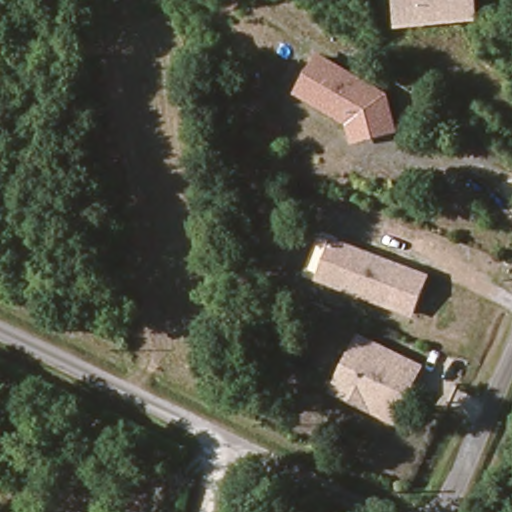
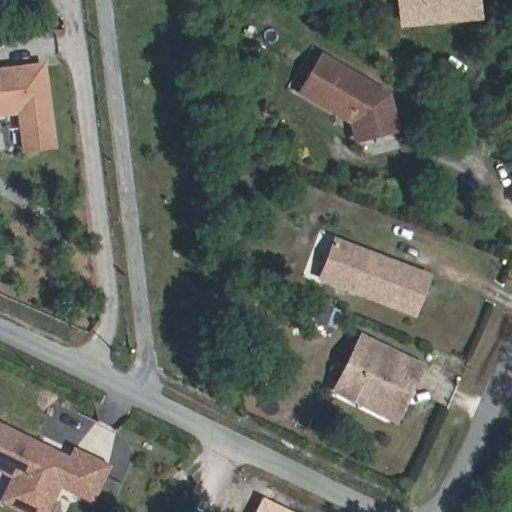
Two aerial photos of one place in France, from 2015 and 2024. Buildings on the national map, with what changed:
unchanged [(472,15),(400,22),(398,0),(471,0),(472,15)]
unchanged [(392,93),(401,134),(351,143),(348,122),(298,93),(321,52),(392,93)]
new [(21,149),(17,112),(0,115),(0,71),(44,65),(53,145),(21,149)]
unchanged [(481,197),(475,211),(487,219),(481,230),(452,217),(456,205),(444,199),(452,183),(481,197)]
unchanged [(434,272),(415,317),(318,282),(335,236),(434,272)]
unchanged [(338,383),(360,338),(398,356),(421,367),(395,421),(389,418),(372,410),(334,392),(338,383)]
new [(59,488),(49,512),(20,512),(0,502),(0,500),(10,477),(0,473),(0,423),(69,456),(73,448),(111,465),(93,505),(59,488)]
new [(291,512),(255,512),(261,497),(291,512)]

